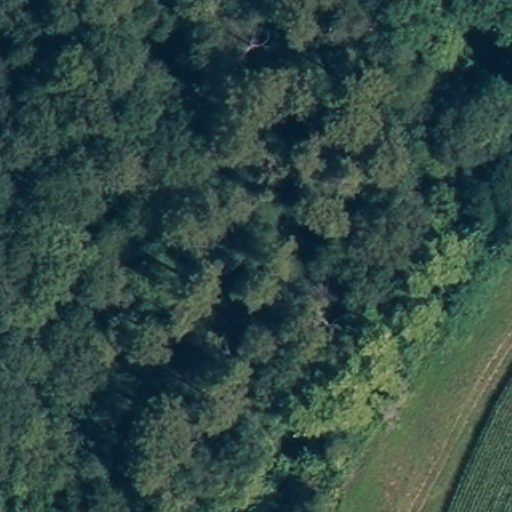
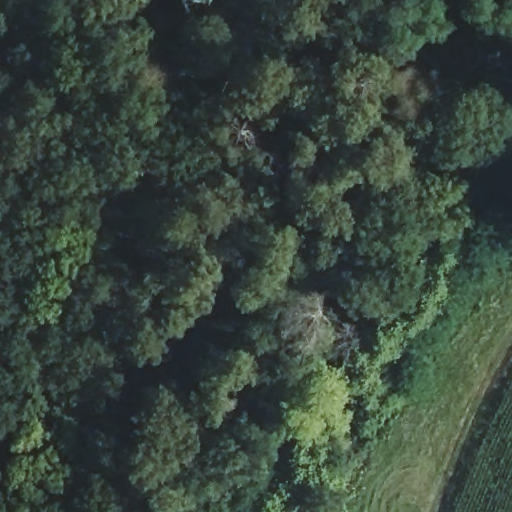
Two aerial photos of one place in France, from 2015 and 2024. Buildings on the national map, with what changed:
[]

